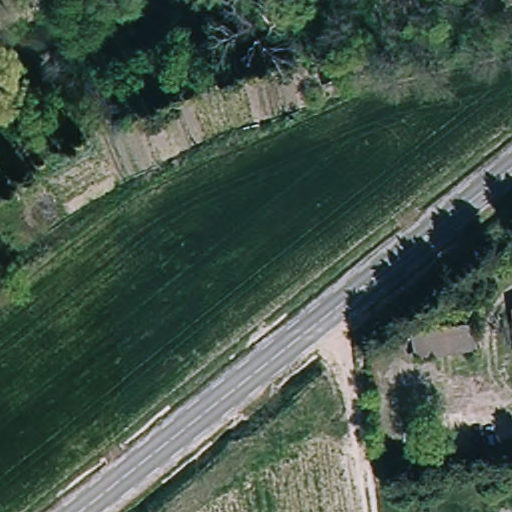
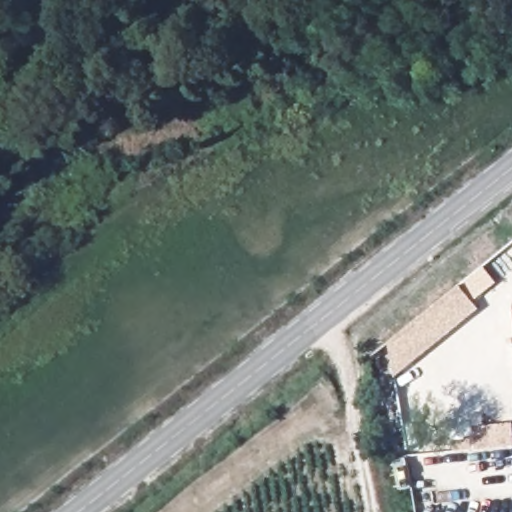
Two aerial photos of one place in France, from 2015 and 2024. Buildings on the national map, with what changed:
unchanged [(301,69),(297,58),(308,54),(312,65),(301,69)]
new [(388,342),(459,285),(479,309),(395,378),(388,342)]

